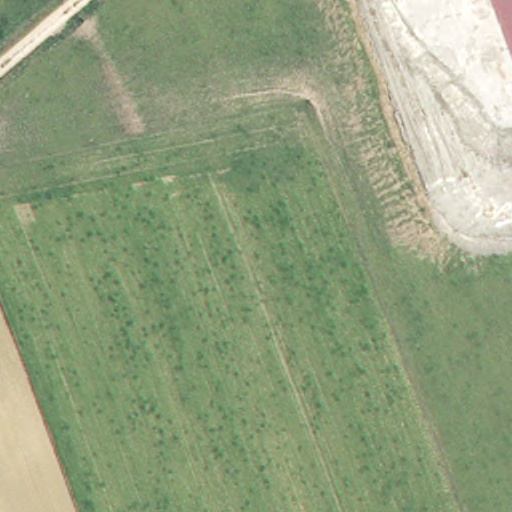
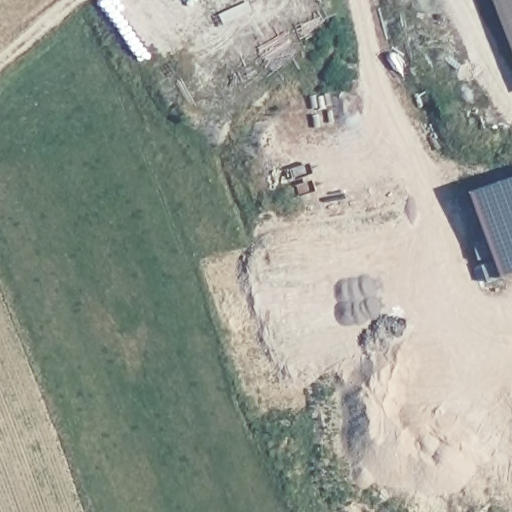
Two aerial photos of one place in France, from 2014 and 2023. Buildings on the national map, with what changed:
unchanged [(512,45),(495,0),(512,0),(512,45)]
new [(512,277),(505,279),(475,194),(512,180),(512,277)]

